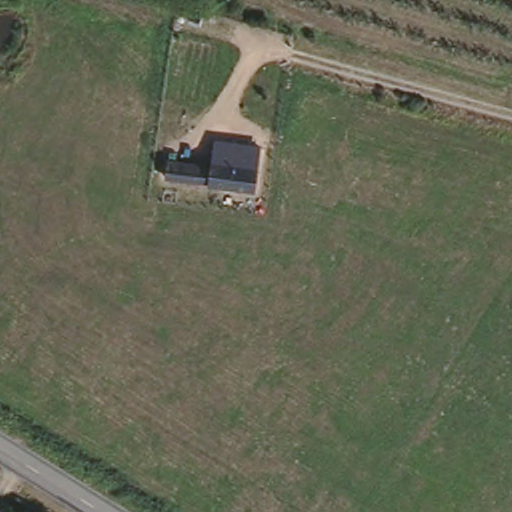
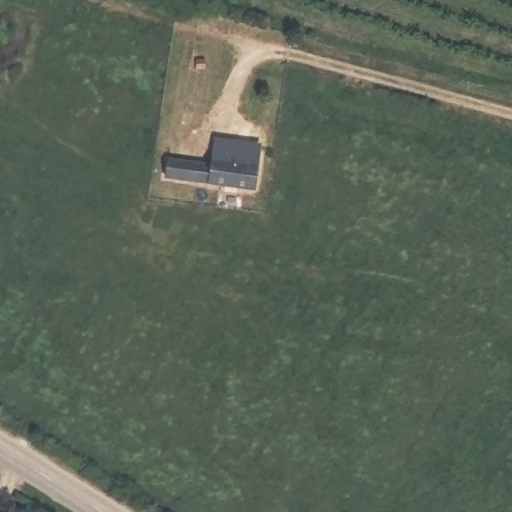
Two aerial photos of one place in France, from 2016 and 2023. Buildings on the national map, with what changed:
unchanged [(171,184),(173,164),(205,170),(209,145),(222,147),(265,153),(261,169),(257,194),(171,184)]

